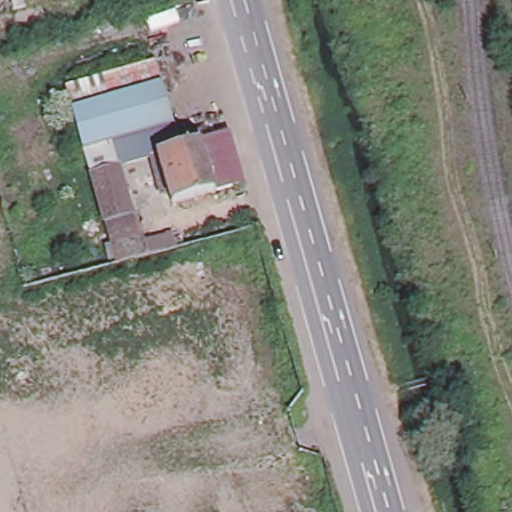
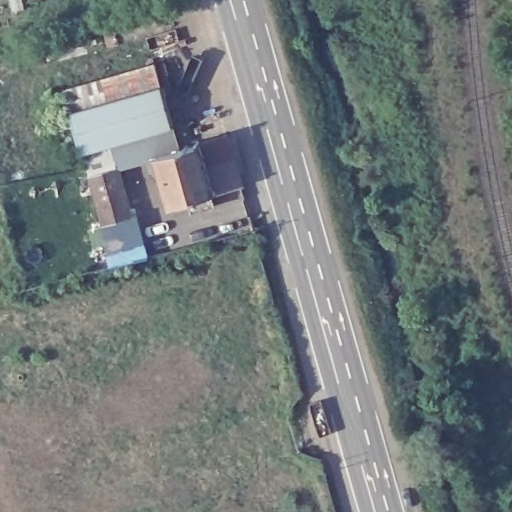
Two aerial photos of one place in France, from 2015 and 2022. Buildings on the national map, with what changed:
unchanged [(109,238),(100,204),(92,177),(85,153),(81,137),(79,129),(68,90),(158,64),(169,103),(165,104),(172,129),(155,134),(156,137),(114,146),(120,169),(127,195),(132,194),(141,226),(144,237),(111,245),(109,238)]
unchanged [(173,204),(160,156),(159,154),(176,149),(228,134),(241,185),(173,204)]

